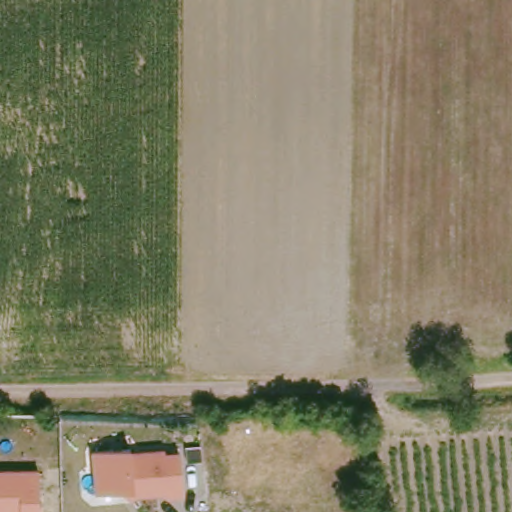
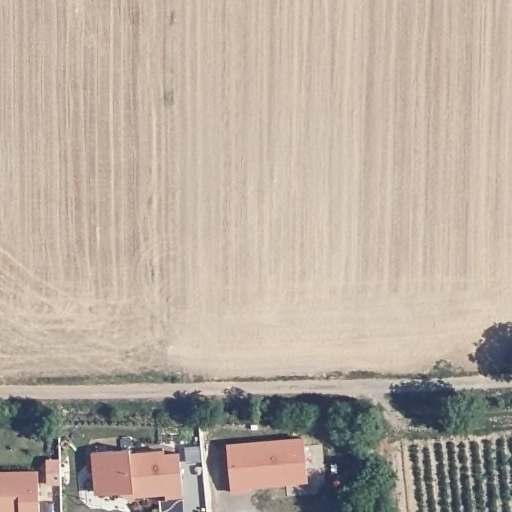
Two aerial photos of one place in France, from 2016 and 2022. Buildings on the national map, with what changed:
new [(252,489),(232,490),(228,442),(304,435),(307,479),(251,485),(252,489)]
unchanged [(163,496),(164,490),(125,493),(122,486),(94,488),(92,447),(127,444),(129,449),(162,445),(165,449),(179,448),(182,493),(163,496)]
unchanged [(4,512),(0,512),(0,467),(37,466),(39,512),(18,512),(18,511),(4,512)]

